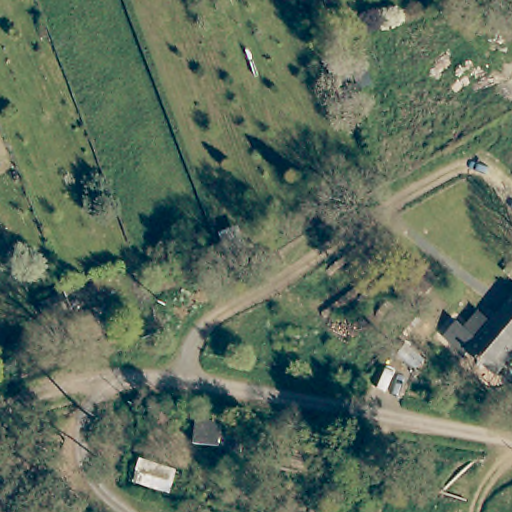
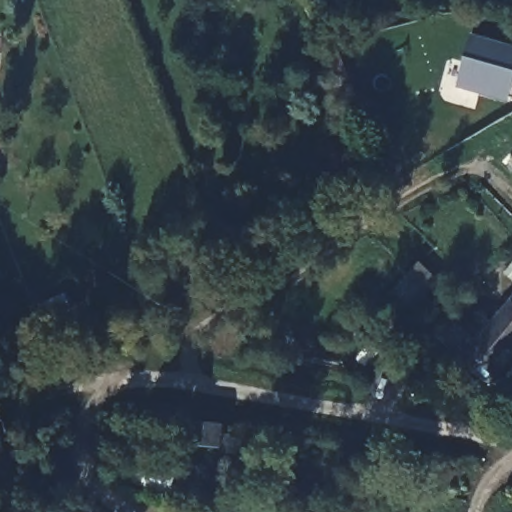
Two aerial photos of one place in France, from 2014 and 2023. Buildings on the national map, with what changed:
unchanged [(351,71),(335,76),(322,40),(337,34),(351,71)]
new [(510,101),(456,86),(471,34),(512,44),(512,98),(511,98),(510,101)]
unchanged [(362,100),(345,105),(340,92),(356,86),(362,100)]
unchanged [(73,310),(45,322),(37,303),(65,292),(73,310)]
unchanged [(512,301),(512,341),(493,324),(512,301)]
unchanged [(512,361),(497,378),(471,354),(466,359),(445,340),(460,325),(465,329),(479,312),(493,324),(512,341),(512,361)]
unchanged [(220,452),(220,448),(196,445),(197,426),(223,428),(222,437),(231,438),(231,441),(243,441),(242,453),(220,452)]
unchanged [(169,492),(134,481),(140,461),(175,473),(169,492)]

